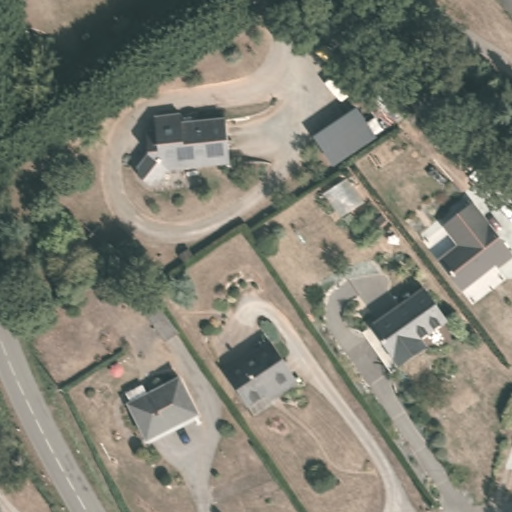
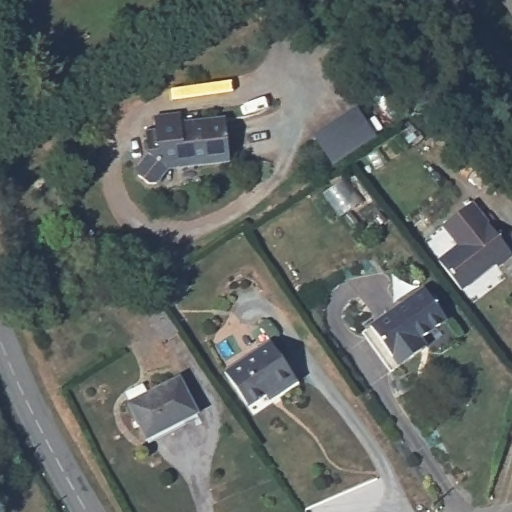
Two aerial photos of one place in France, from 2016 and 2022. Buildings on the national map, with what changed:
unchanged [(492,2),(494,0),(512,0),(512,24),(492,2)]
unchanged [(332,168),(311,136),(357,105),(377,136),(332,168)]
unchanged [(180,115),(181,124),(224,121),(227,166),(169,172),(151,195),(142,196),(135,189),(135,177),(146,165),(144,147),(141,125),(154,123),(153,118),(180,115)]
unchanged [(496,267),(493,263),(459,289),(437,260),(457,244),(442,224),(471,202),(511,255),(496,267)]
unchanged [(146,313),(150,311),(141,297),(150,291),(160,305),(180,334),(165,341),(146,313)]
unchanged [(423,291),(447,323),(416,346),(422,354),(400,370),(371,332),(423,291)]
unchanged [(271,341),(296,377),(274,391),(272,389),(248,404),(225,372),(271,341)]
unchanged [(199,413),(147,440),(127,404),(130,403),(126,392),(143,383),(149,393),(179,377),(199,413)]

